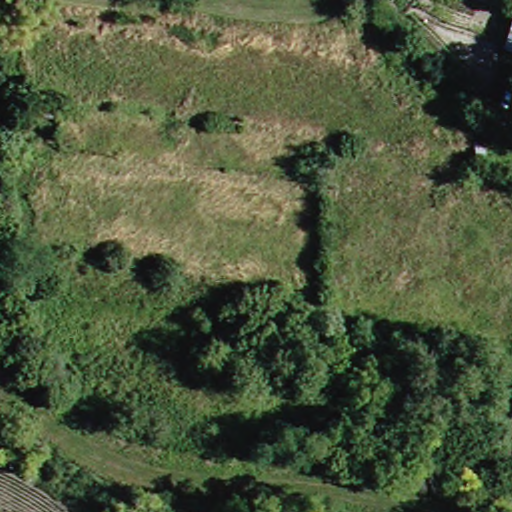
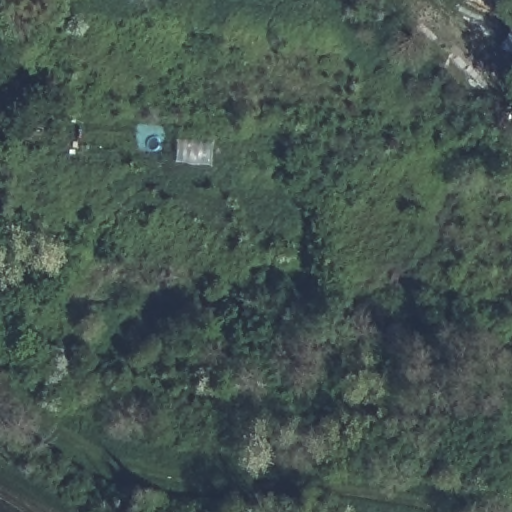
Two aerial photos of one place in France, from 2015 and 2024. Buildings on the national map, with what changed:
unchanged [(507,47),(512,29),(512,48),(507,47)]

